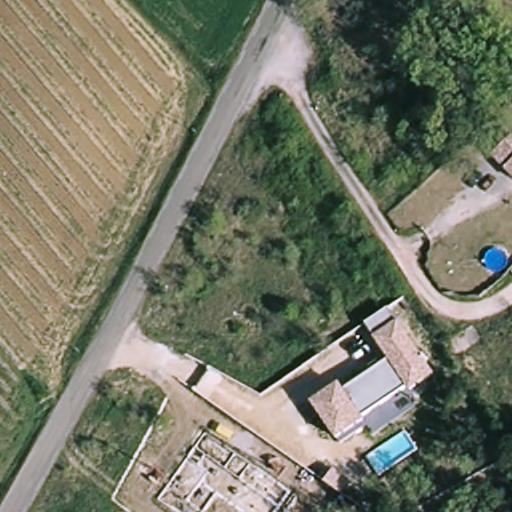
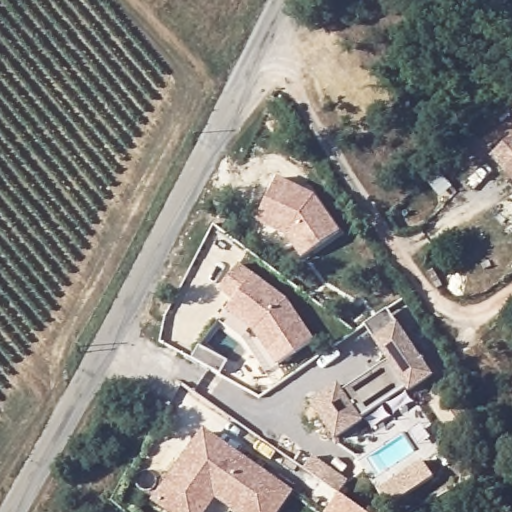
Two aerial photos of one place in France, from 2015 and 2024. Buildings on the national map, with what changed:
unchanged [(493,150),(512,134),(512,172),(493,150)]
new [(276,176),(304,191),(306,195),(310,192),(337,232),(299,257),(285,234),(254,219),(276,176)]
new [(237,262),(285,298),(312,338),(278,362),(254,328),(226,307),(232,297),(218,286),(237,262)]
unchanged [(399,322),(435,375),(409,392),(405,387),(361,417),(365,423),(333,440),(310,404),(339,385),(344,392),(389,361),(373,338),(364,323),(388,309),(399,322)]
new [(278,512),(232,512),(214,499),(206,512),(164,512),(151,503),(202,428),(292,492),(278,512)]

